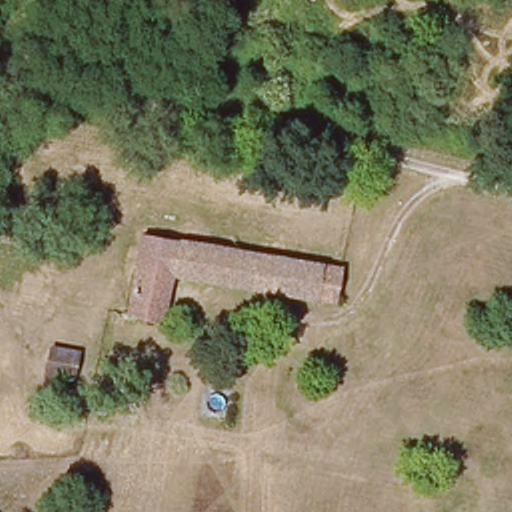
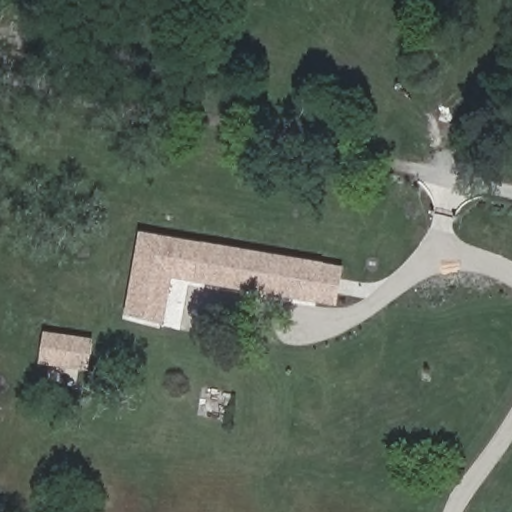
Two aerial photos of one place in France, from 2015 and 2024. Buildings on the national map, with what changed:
unchanged [(342,267),(335,303),(172,276),(163,325),(127,317),(143,235),(342,267)]
new [(44,331),(94,338),(91,354),(89,371),(39,364),(41,347),(44,331)]
demolished [(47,371),(53,348),(78,354),(72,377),(47,371)]
demolished [(218,364),(221,350),(244,356),(240,370),(218,364)]

